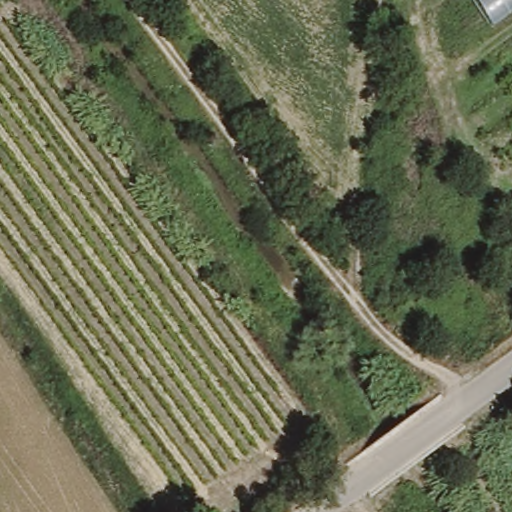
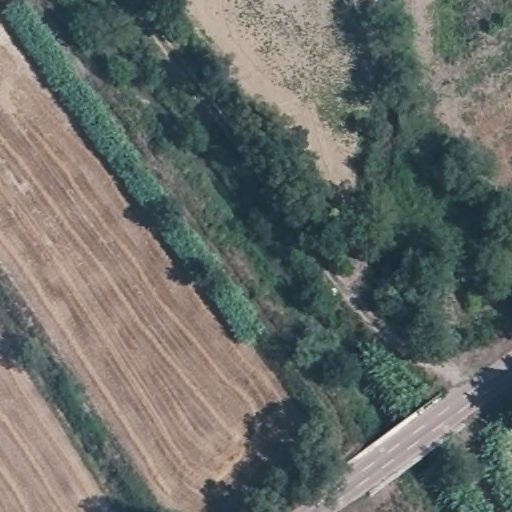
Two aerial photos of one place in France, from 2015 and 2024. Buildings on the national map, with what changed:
demolished [(473,0),(512,0),(512,9),(489,25),(473,0)]

